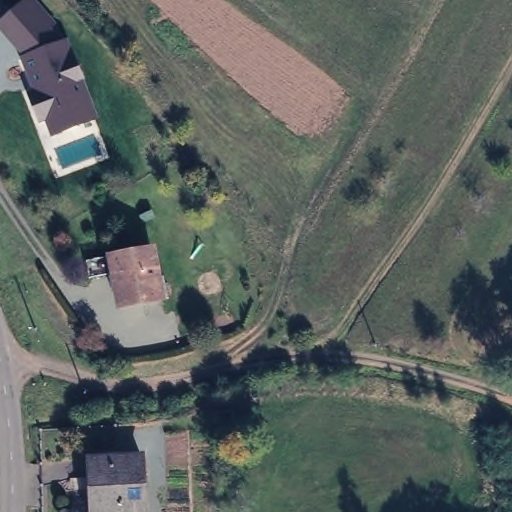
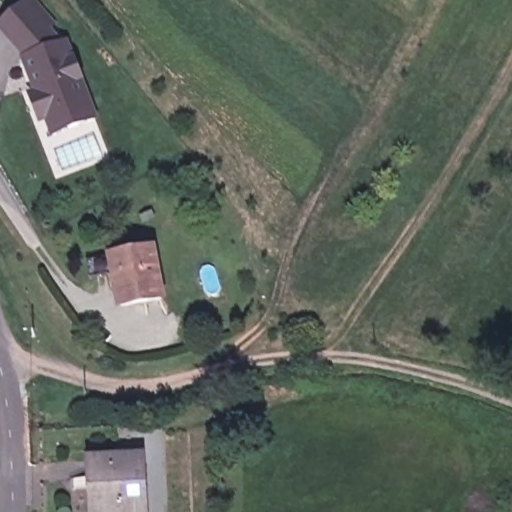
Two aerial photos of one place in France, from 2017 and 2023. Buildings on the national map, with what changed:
unchanged [(42,123),(37,125),(24,91),(30,89),(18,52),(0,30),(0,20),(20,0),(32,0),(55,24),(51,29),(60,39),(66,37),(98,119),(49,138),(42,123)]
unchanged [(115,262),(155,256),(167,307),(124,312),(115,262)]
unchanged [(145,507),(121,510),(121,512),(88,512),(85,467),(90,466),(92,453),(97,452),(142,449),(145,507)]

